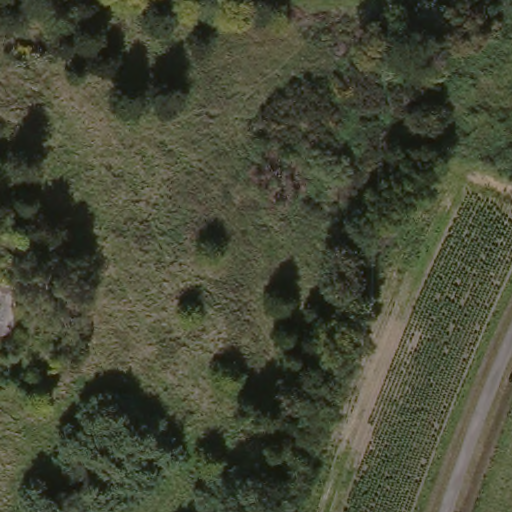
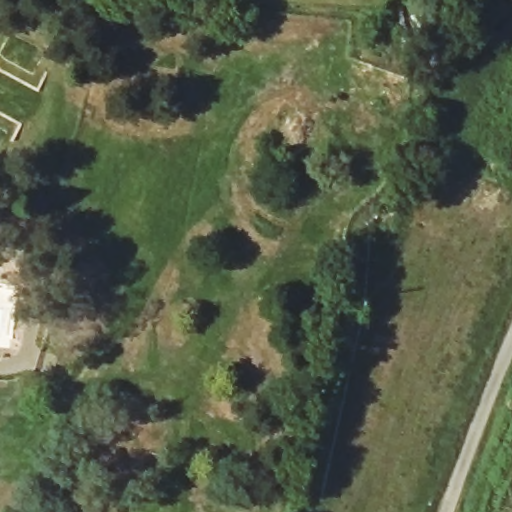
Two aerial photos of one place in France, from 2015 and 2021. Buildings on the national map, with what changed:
unchanged [(31,53),(0,38),(0,14),(41,33),(31,53)]

